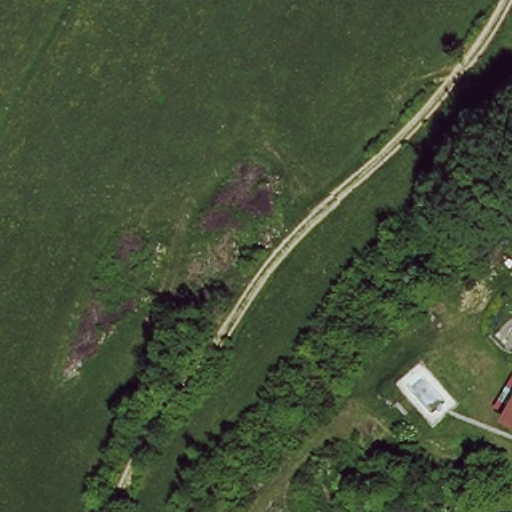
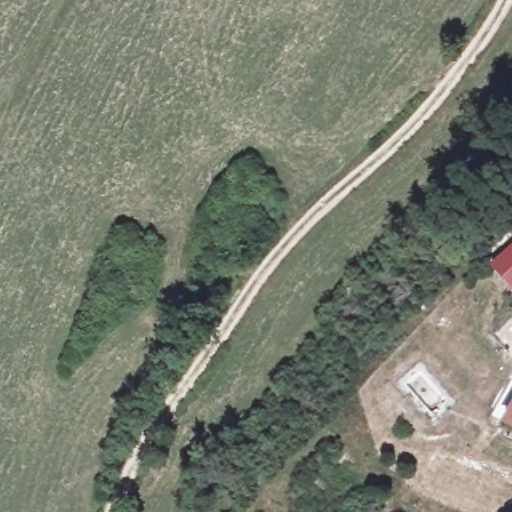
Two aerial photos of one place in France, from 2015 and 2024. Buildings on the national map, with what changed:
new [(512,246),(512,292),(489,267),(512,246)]
unchanged [(499,406),(512,384),(512,413),(499,406)]
unchanged [(508,420),(512,413),(512,423),(508,420)]

